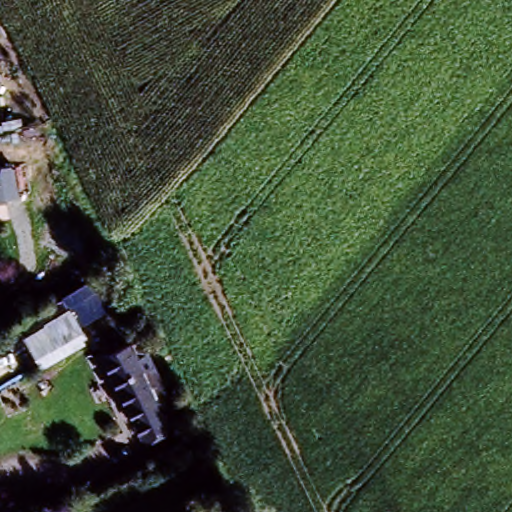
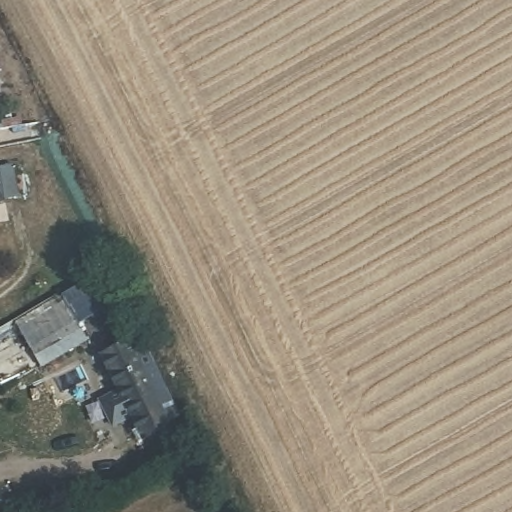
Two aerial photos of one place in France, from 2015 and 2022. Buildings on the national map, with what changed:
unchanged [(1,84),(0,84),(0,83),(1,84)]
unchanged [(11,164),(14,183),(0,185),(0,166),(11,164)]
unchanged [(126,299),(84,323),(92,341),(0,396),(0,333),(107,270),(126,299)]
unchanged [(136,433),(128,418),(97,352),(121,341),(152,407),(160,422),(136,433)]

